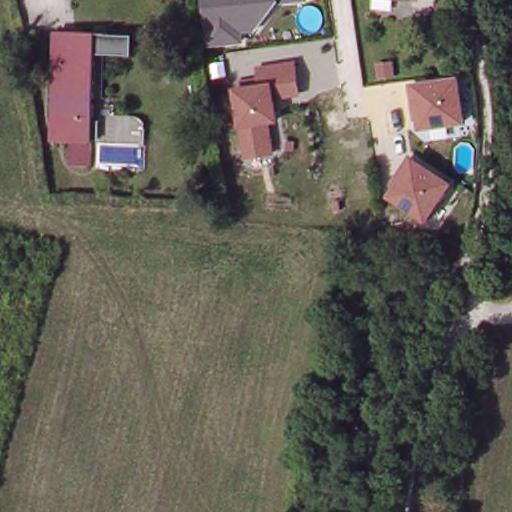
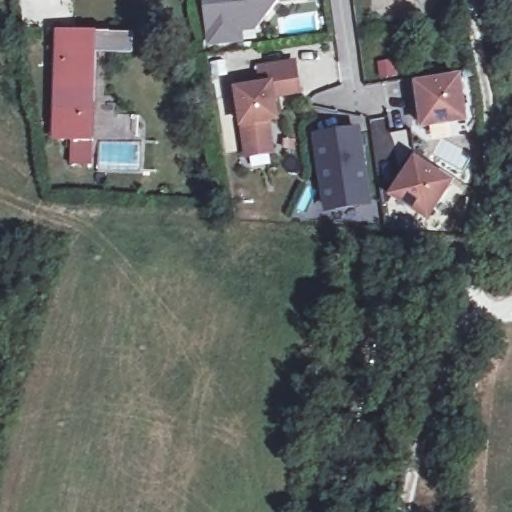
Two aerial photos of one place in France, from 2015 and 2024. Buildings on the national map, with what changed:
unchanged [(309,1),(276,4),(253,34),(242,34),(243,43),(206,47),(201,0),(308,0),(309,1)]
unchanged [(512,6),(500,1),(500,0),(512,0),(512,5),(512,6)]
unchanged [(70,161),(71,147),(53,147),(54,130),(58,38),(98,40),(134,42),(133,62),(96,60),(94,117),(113,119),(112,148),(98,148),(93,147),(92,162),(70,161)]
unchanged [(502,62),(501,41),(512,40),(512,61),(502,62)]
unchanged [(296,63),(298,97),(279,100),(281,120),(269,123),(275,156),(246,160),(242,129),(236,89),(257,84),(258,67),(296,63)]
unchanged [(459,77),(464,123),(424,130),(424,121),(416,122),(413,84),(459,77)]
new [(341,132),(358,130),(366,200),(324,206),(315,136),(331,133),(341,132)]
unchanged [(456,182),(429,222),(391,197),(415,159),(456,182)]

